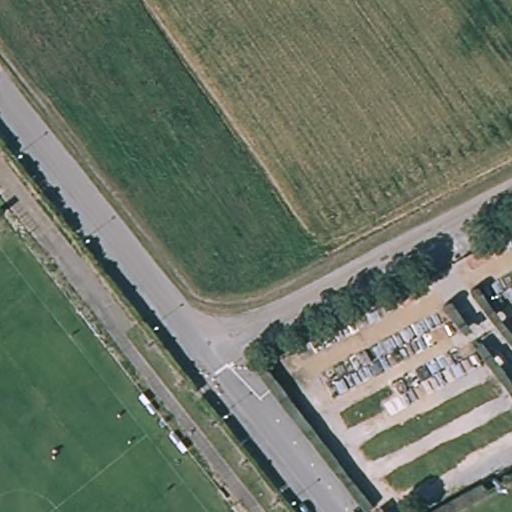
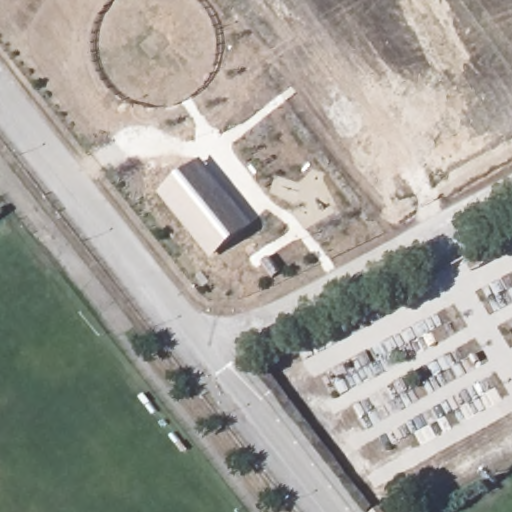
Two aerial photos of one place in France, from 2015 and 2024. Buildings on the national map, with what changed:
new [(157,192),(200,156),(252,226),(210,258),(157,192)]
unchanged [(488,244),(495,257),(470,270),(462,258),(488,244)]
unchanged [(410,287),(416,300),(402,307),(395,294),(410,287)]

